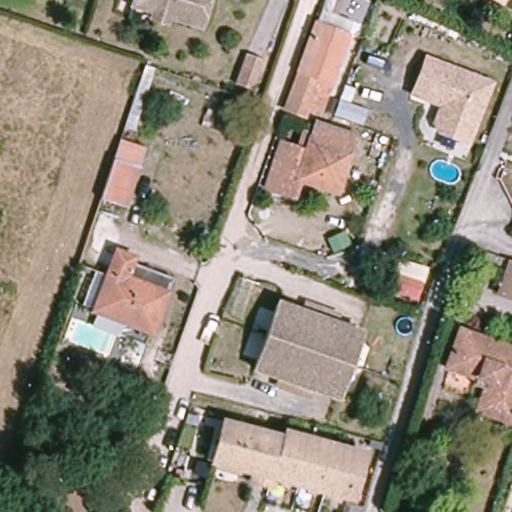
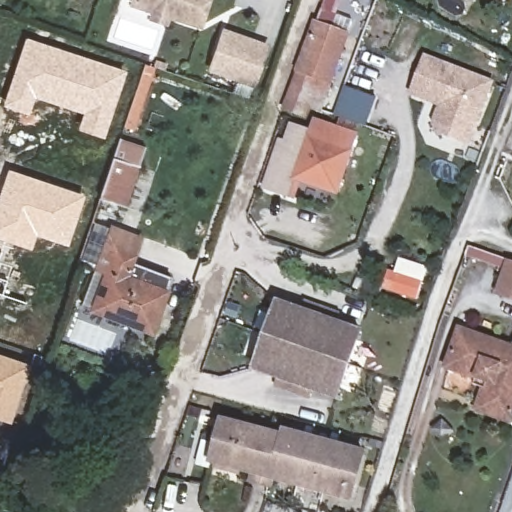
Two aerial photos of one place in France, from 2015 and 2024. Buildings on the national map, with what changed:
unchanged [(128,0),(203,0),(196,22),(128,0)]
unchanged [(492,0),(506,0),(502,6),(492,0)]
unchanged [(318,25),(322,10),(353,21),(347,35),(320,111),(309,106),(305,116),(285,108),(316,24),(318,25)]
new [(209,71),(223,28),(269,45),(254,86),(209,71)]
new [(30,114),(4,105),(25,38),(126,71),(104,138),(79,129),(84,114),(35,98),(30,114)]
unchanged [(423,55),(494,82),(469,146),(436,134),(431,121),(437,106),(408,96),(423,55)]
unchanged [(312,135),(316,121),(330,125),(356,134),(336,191),(298,178),(293,195),(266,186),(281,142),(299,148),(305,132),(312,135)]
unchanged [(120,141),(145,150),(140,166),(138,165),(125,206),(100,199),(120,141)]
new [(37,235),(31,250),(0,239),(0,192),(8,169),(85,195),(68,246),(37,235)]
new [(131,262),(133,257),(117,251),(108,275),(95,270),(111,224),(143,237),(135,263),(131,262)]
unchanged [(133,257),(131,262),(172,277),(152,331),(82,305),(95,270),(108,275),(117,251),(133,257)]
unchanged [(510,260),(512,261),(512,297),(499,293),(510,260)]
unchanged [(247,364),(272,298),(297,307),(300,299),(332,310),(330,318),(355,327),(330,393),(305,384),(301,392),(270,381),(273,373),(247,364)]
unchanged [(478,409),(488,382),(447,367),(460,330),(512,348),(512,415),(510,420),(478,409)]
new [(25,368),(6,422),(0,419),(0,359),(25,368)]
unchanged [(348,499),(269,477),(266,486),(250,482),(252,473),(210,462),(215,445),(209,443),(215,420),(280,438),(281,433),(360,454),(348,499)]

